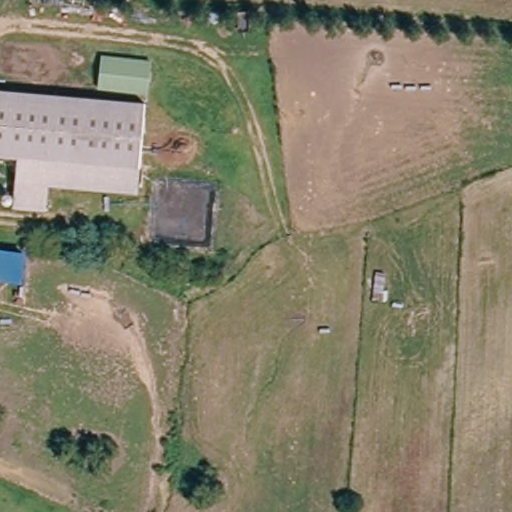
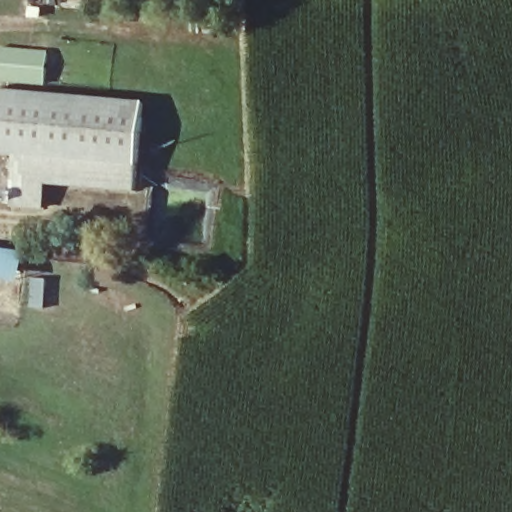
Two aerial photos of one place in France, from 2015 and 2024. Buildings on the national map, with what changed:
new [(51,50),(48,83),(0,79),(0,55),(1,45),(51,50)]
unchanged [(18,207),(20,179),(22,154),(0,152),(0,89),(4,89),(150,104),(141,192),(51,183),(49,208),(18,207)]
unchanged [(22,253),(20,279),(0,277),(0,250),(22,253)]

